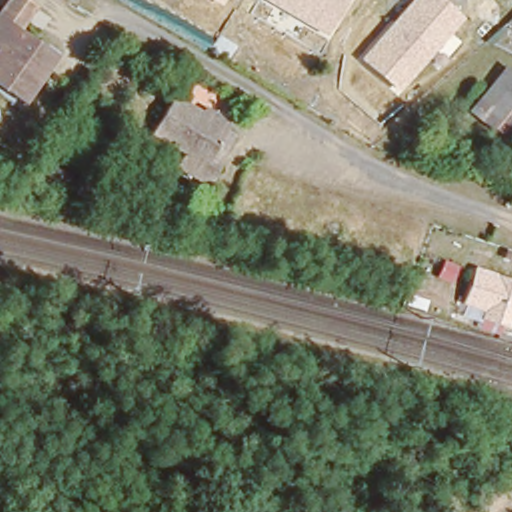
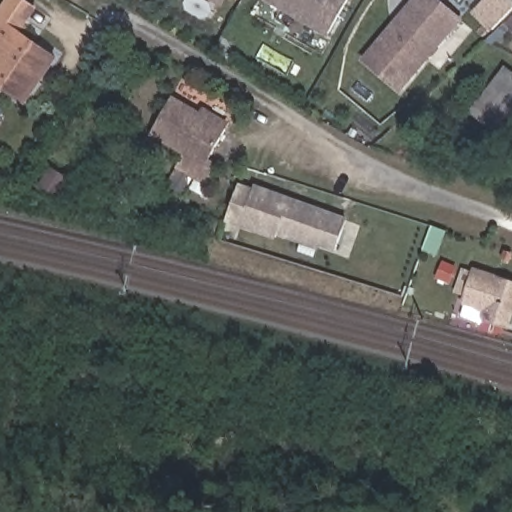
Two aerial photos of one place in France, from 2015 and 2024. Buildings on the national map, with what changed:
unchanged [(27,96),(0,81),(0,46),(2,44),(0,43),(0,5),(2,2),(3,0),(28,0),(31,1),(24,15),(17,26),(49,44),(56,49),(43,71),(27,96)]
unchanged [(216,0),(227,0),(225,5),(216,0)]
unchanged [(268,0),(349,0),(326,36),(268,0)]
unchanged [(361,58),(411,0),(444,0),(465,18),(401,93),(361,58)]
unchanged [(512,125),(501,138),(472,111),(508,66),(512,70),(512,125)]
unchanged [(181,151),(190,136),(159,119),(179,86),(230,116),(212,150),(223,155),(215,170),(181,151)]
new [(336,251),(320,246),(318,249),(277,235),(276,239),(226,222),(238,182),(254,189),(255,184),(348,217),(336,251)]
unchanged [(483,263),(512,275),(512,306),(508,318),(470,305),(483,263)]

